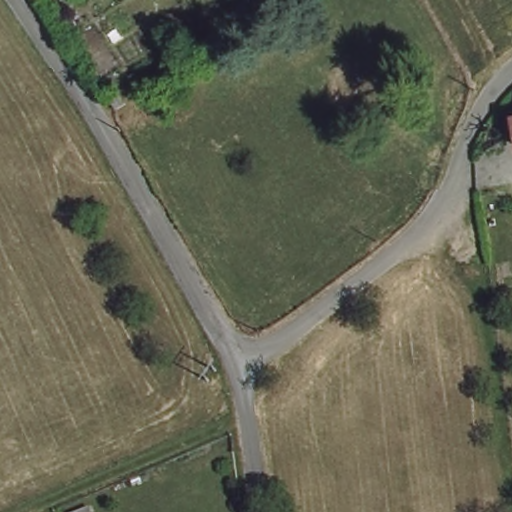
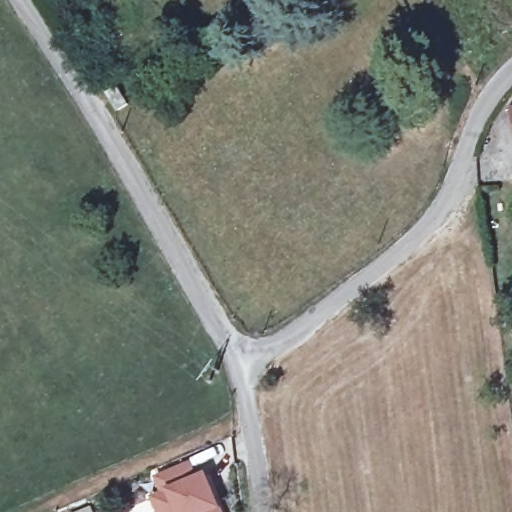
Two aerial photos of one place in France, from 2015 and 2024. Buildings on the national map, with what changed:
unchanged [(117,87),(127,104),(115,111),(106,93),(117,87)]
unchanged [(512,118),(512,135),(509,119),(512,118)]
new [(157,491),(152,479),(190,461),(196,475),(206,471),(223,512),(155,512),(148,495),(157,491)]
unchanged [(98,512),(79,512),(95,505),(98,512)]

